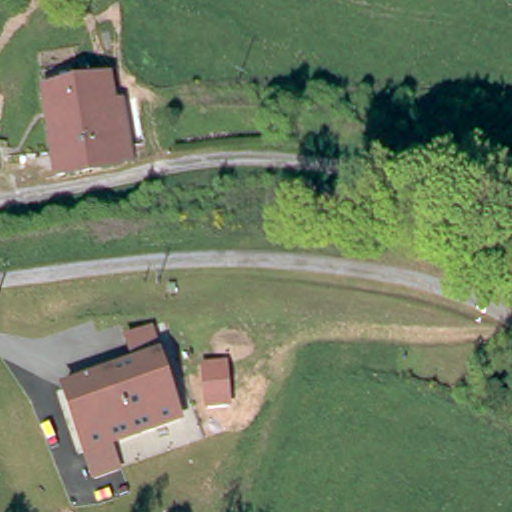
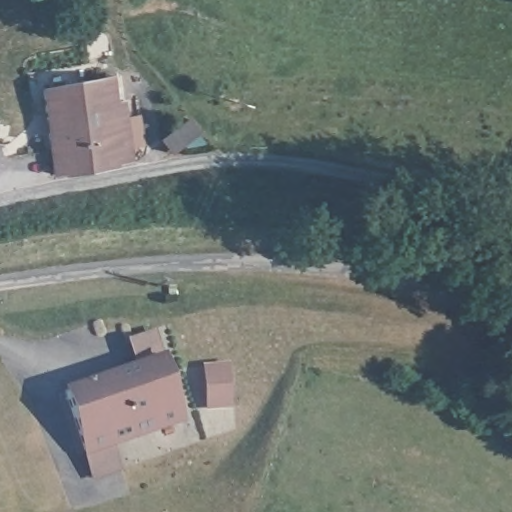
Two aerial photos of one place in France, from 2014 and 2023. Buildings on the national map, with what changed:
unchanged [(45,148),(35,60),(67,55),(71,55),(72,70),(101,66),(104,89),(112,88),(122,156),(72,164),(47,168),(45,148)]
unchanged [(85,457),(62,389),(134,362),(127,342),(154,331),(161,353),(182,419),(114,445),(119,471),(91,478),(85,457)]

